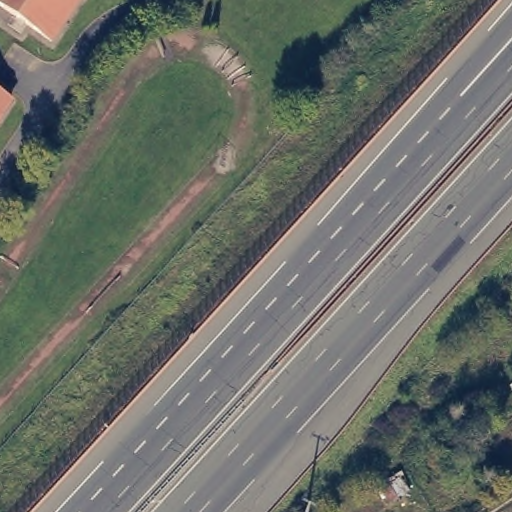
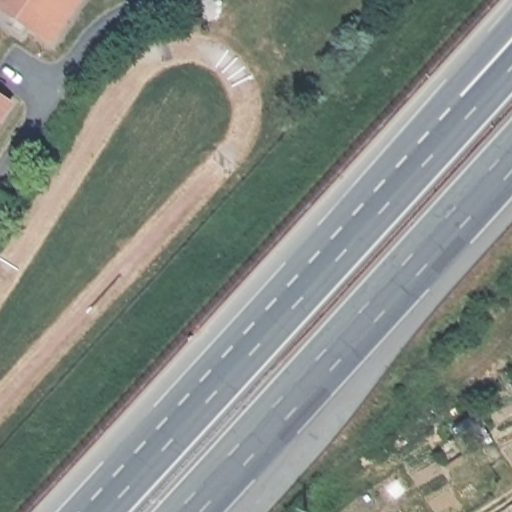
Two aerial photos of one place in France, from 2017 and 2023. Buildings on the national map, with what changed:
unchanged [(0,6),(0,0),(78,0),(51,41),(0,6)]
unchanged [(0,117),(0,96),(10,103),(0,117)]

